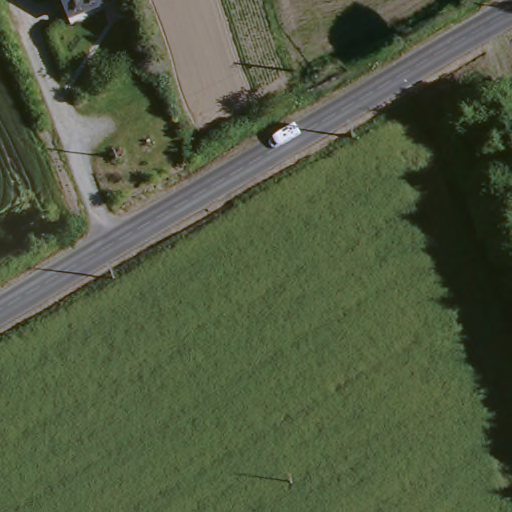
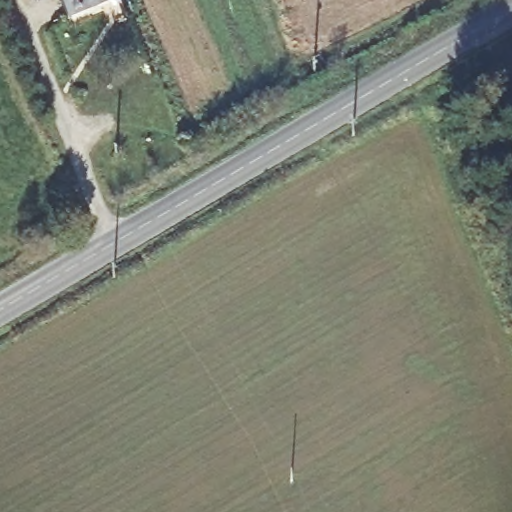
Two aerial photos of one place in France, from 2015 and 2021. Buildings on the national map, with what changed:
unchanged [(120,7),(102,14),(98,7),(67,18),(60,0),(118,0),(120,7)]

